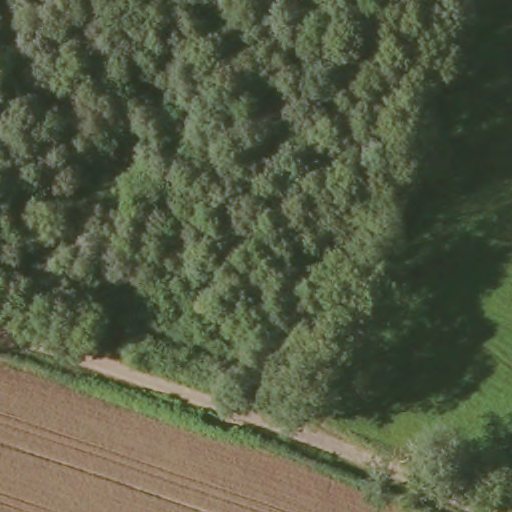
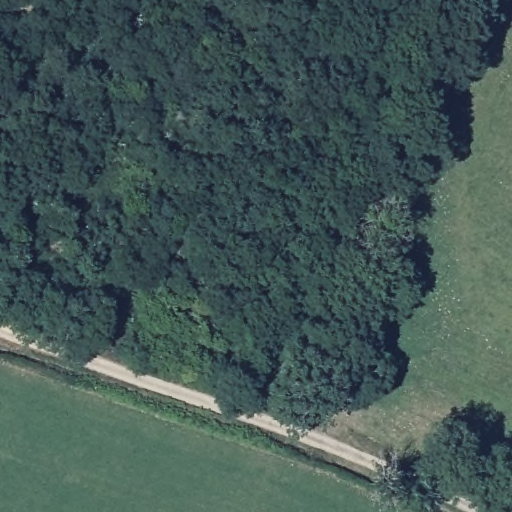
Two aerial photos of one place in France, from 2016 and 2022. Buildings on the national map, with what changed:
unchanged [(386,267),(380,285),(368,281),(374,263),(386,267)]

